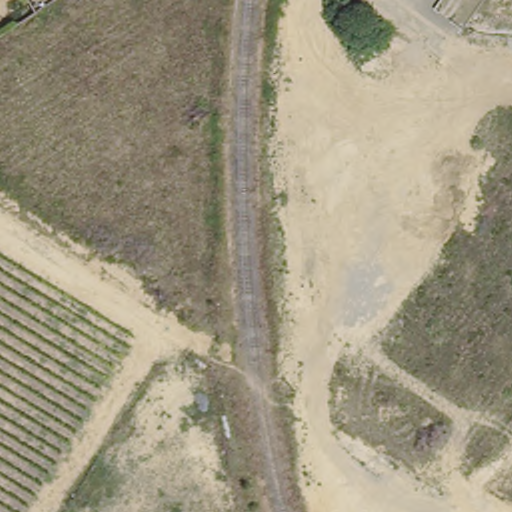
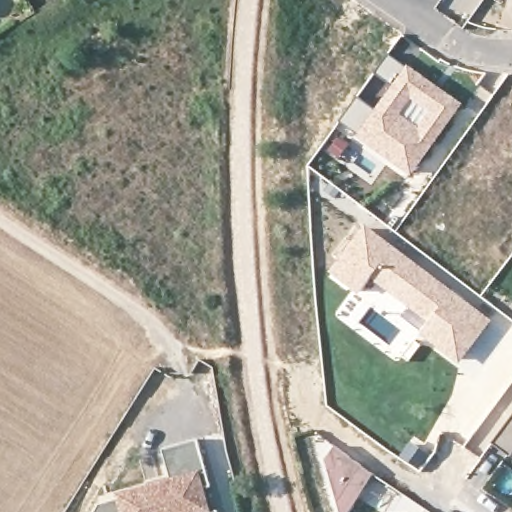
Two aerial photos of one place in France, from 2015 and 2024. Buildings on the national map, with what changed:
new [(357,133),(340,120),(358,96),(375,109),(392,84),(377,71),(390,54),(405,64),(407,63),(463,104),(410,176),(356,135),(357,134),(357,133)]
new [(460,364),(420,334),(430,322),(371,278),(360,294),(330,272),(366,224),(493,320),(460,364)]
new [(491,444),(512,415),(512,455),(511,457),(491,444)]
new [(210,487),(205,488),(212,511),(217,509),(218,512),(96,512),(100,504),(119,499),(117,493),(172,478),(163,449),(198,439),(210,487)]
new [(349,512),(342,512),(326,459),(335,446),(373,474),(349,512)]

